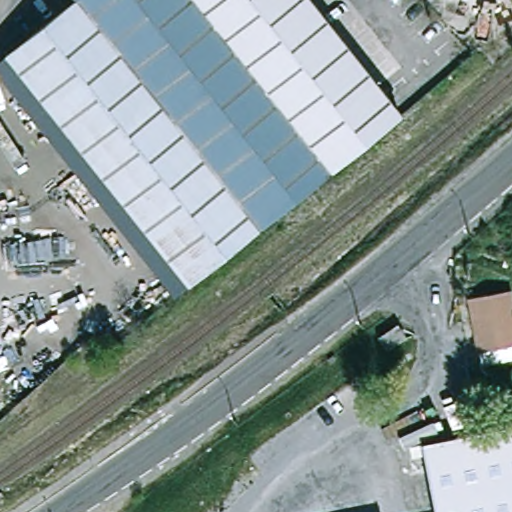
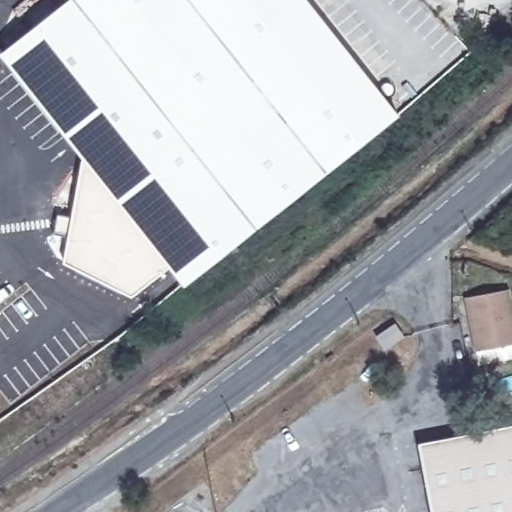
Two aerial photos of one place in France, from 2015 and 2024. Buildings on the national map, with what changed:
unchanged [(13,39),(60,1),(68,12),(80,2),(78,0),(314,0),(379,83),(402,112),(244,245),(233,253),(191,287),(9,59),(21,49),(13,39)]
new [(173,265),(134,297),(64,262),(69,236),(55,234),(59,215),(72,217),(85,154),(173,265)]
unchanged [(512,294),(512,349),(484,354),(475,300),(512,294)]
unchanged [(397,321),(406,333),(387,347),(378,335),(397,321)]
unchanged [(426,444),(512,428),(512,512),(439,512),(426,444)]

